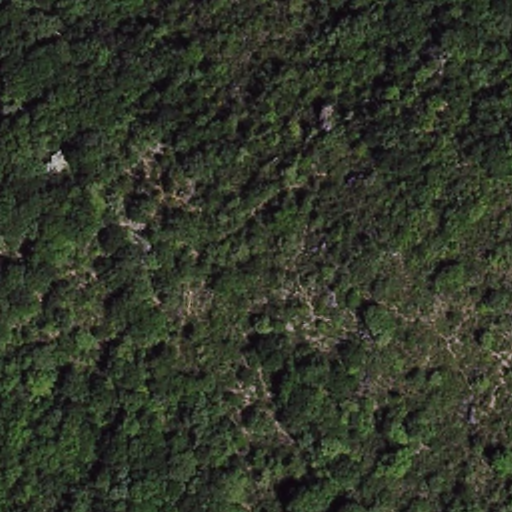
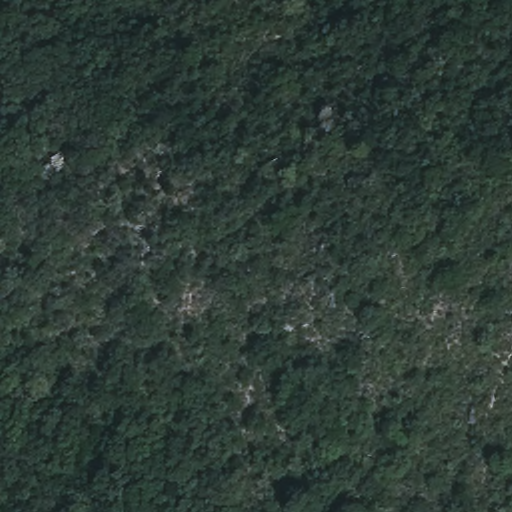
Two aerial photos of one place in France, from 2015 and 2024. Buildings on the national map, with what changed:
[]

